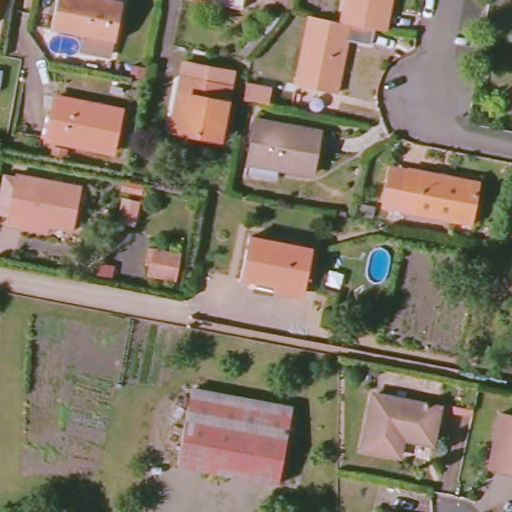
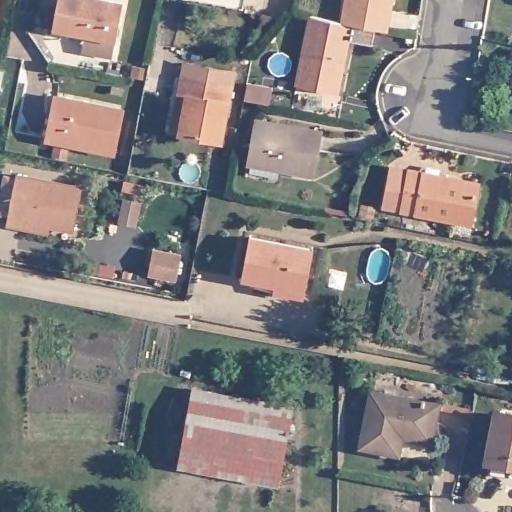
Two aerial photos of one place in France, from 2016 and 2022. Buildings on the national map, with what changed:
unchanged [(0,13),(0,0),(3,0),(0,13)]
unchanged [(60,0),(108,0),(123,2),(115,45),(53,33),(60,0)]
unchanged [(248,4),(246,6),(214,0),(249,0),(248,4)]
unchanged [(348,0),(392,0),(386,30),(377,29),(344,22),(348,0)]
unchanged [(372,49),(348,45),(338,93),(297,86),(311,17),(344,22),(377,29),(372,49)]
unchanged [(233,74),(221,139),(180,132),(183,110),(176,109),(178,95),(184,66),(233,74)]
unchanged [(127,112),(118,154),(53,140),(63,99),(127,112)]
unchanged [(324,135),(315,174),(252,162),(260,122),(324,135)]
unchanged [(483,187),(475,227),(388,211),(398,170),(483,187)]
unchanged [(80,189),(70,230),(46,225),(45,232),(10,225),(20,176),(80,189)]
unchanged [(314,252),(305,293),(278,288),(276,293),(252,288),(253,282),(243,280),(251,239),(314,252)]
unchanged [(295,412),(281,487),(180,468),(196,392),(295,412)]
unchanged [(443,407),(436,443),(406,439),(403,453),(366,447),(378,395),(443,407)]
unchanged [(512,415),(512,468),(495,466),(506,413),(512,415)]

